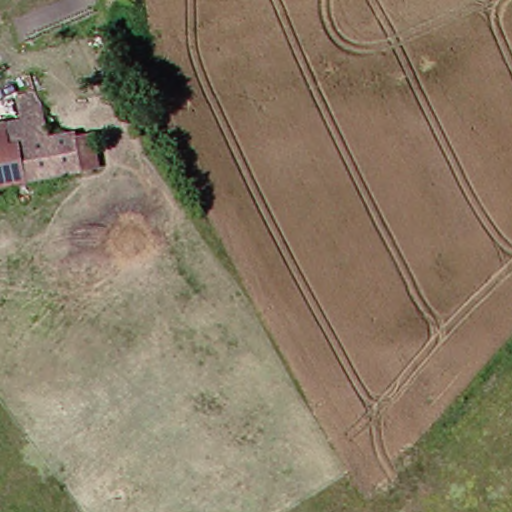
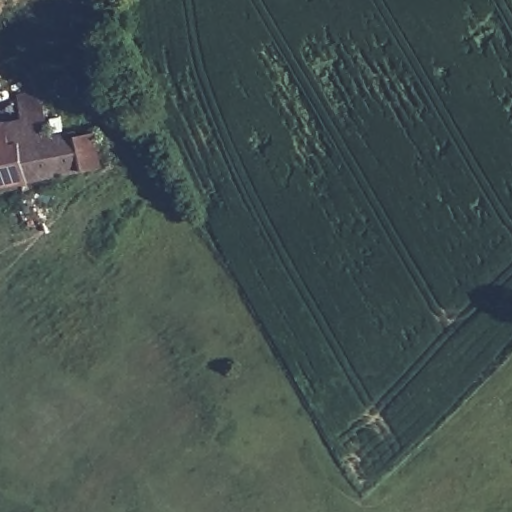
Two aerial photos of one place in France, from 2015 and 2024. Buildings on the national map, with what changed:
unchanged [(110,135),(107,135),(112,170),(90,174),(86,139),(62,142),(55,94),(105,88),(110,135)]
unchanged [(2,198),(0,198),(0,125),(19,123),(40,120),(37,97),(55,94),(62,142),(86,139),(90,174),(1,188),(2,198)]

